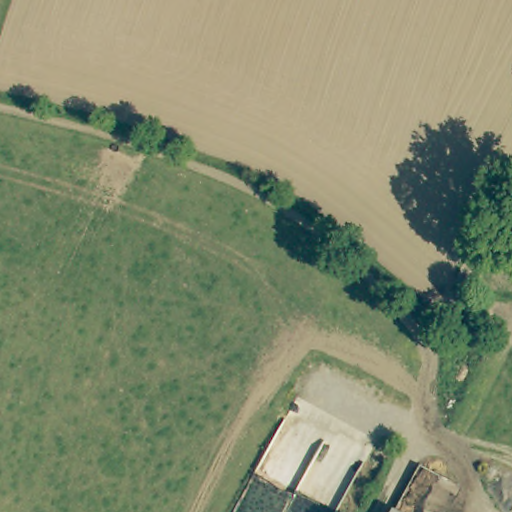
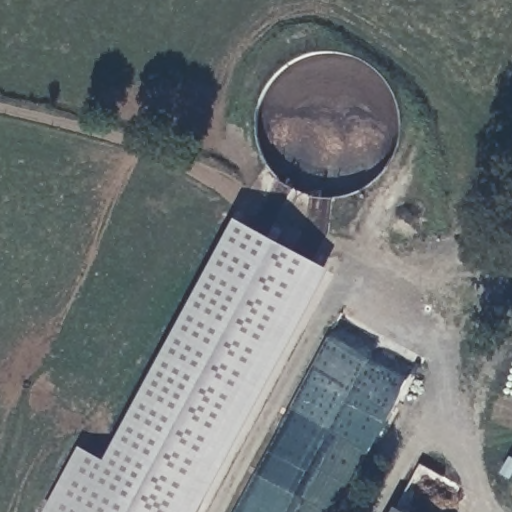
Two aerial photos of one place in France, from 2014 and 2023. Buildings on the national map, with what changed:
new [(200,512),(45,512),(80,447),(107,460),(238,221),(331,270),(200,512)]
unchanged [(407,512),(399,512),(400,508),(407,512)]

